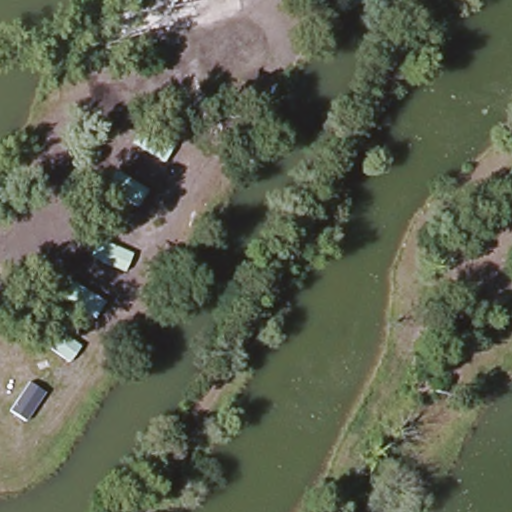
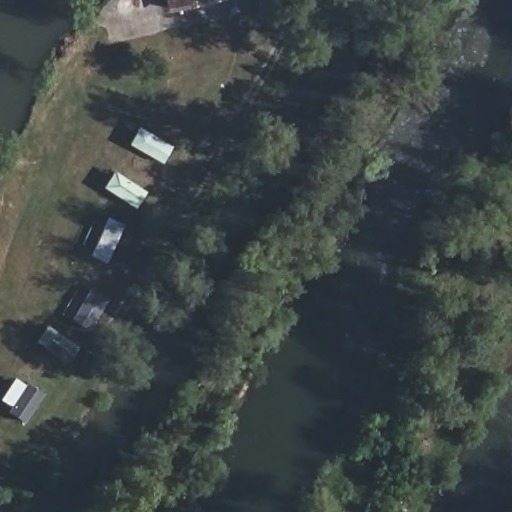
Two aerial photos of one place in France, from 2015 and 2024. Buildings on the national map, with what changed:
unchanged [(168,0),(220,0),(169,9),(168,0)]

